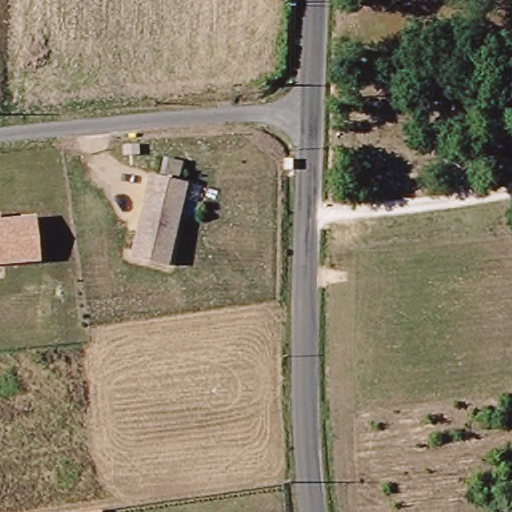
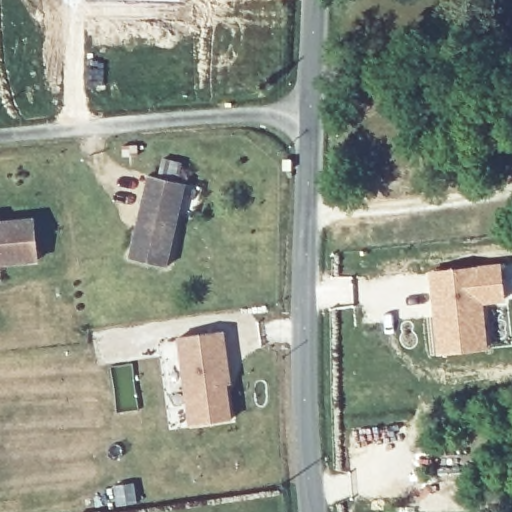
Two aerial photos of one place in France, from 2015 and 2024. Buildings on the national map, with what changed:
unchanged [(169,269),(130,261),(129,257),(149,177),(188,185),(173,253),(169,269)]
unchanged [(0,213),(2,220),(36,217),(40,262),(0,267),(0,213)]
new [(505,300),(484,303),(488,349),(437,354),(430,271),(501,262),(505,300)]
new [(232,384),(227,385),(232,419),(191,425),(178,337),(225,329),(232,384)]
demolished [(154,512),(133,512),(154,509),(154,512)]
new [(100,512),(90,512),(100,510),(100,512)]

